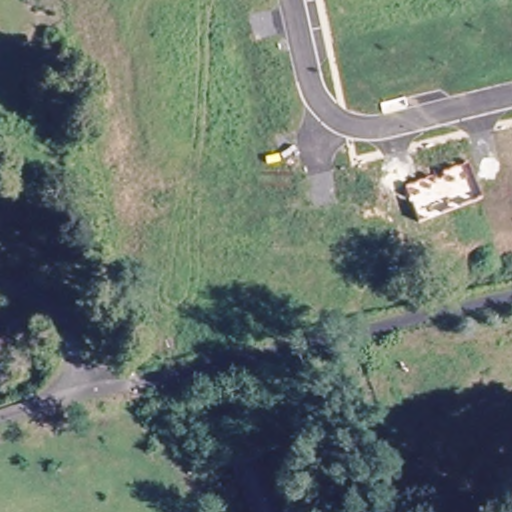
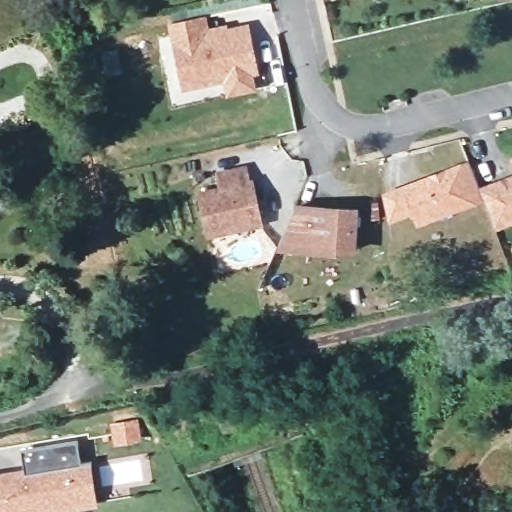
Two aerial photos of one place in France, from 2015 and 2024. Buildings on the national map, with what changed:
new [(208,16),(210,27),(225,25),(227,29),(248,23),(260,74),(256,75),(258,89),(228,96),(224,80),(182,88),(167,25),(208,16)]
unchanged [(511,159),(512,158),(512,163),(511,159)]
unchanged [(484,198),(418,223),(406,187),(468,164),(484,198)]
new [(250,176),(255,178),(263,225),(207,237),(196,190),(219,185),(216,171),(247,165),(250,176)]
unchanged [(512,175),(512,224),(495,230),(484,198),(479,186),(512,175)]
new [(356,255),(279,250),(298,202),(360,206),(356,255)]
new [(94,460),(100,504),(53,512),(0,512),(0,472),(25,468),(23,450),(76,440),(80,462),(94,460)]

